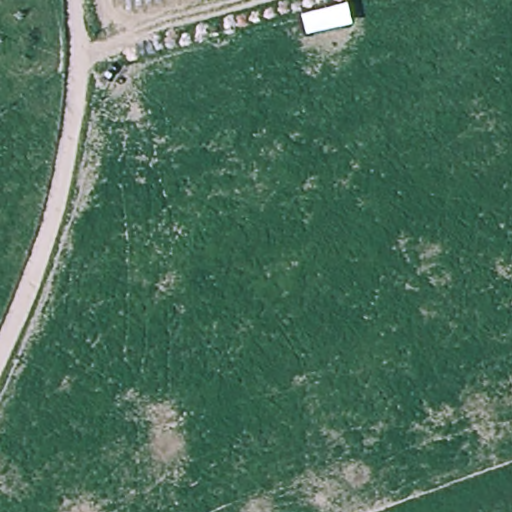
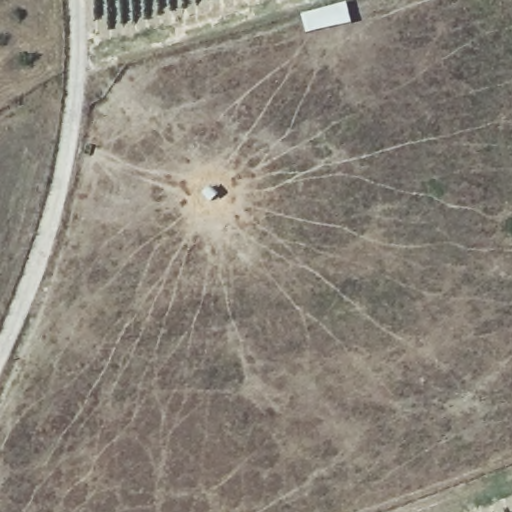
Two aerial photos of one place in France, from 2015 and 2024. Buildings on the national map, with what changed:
unchanged [(301,16),(346,4),(351,22),(307,36),(301,16)]

